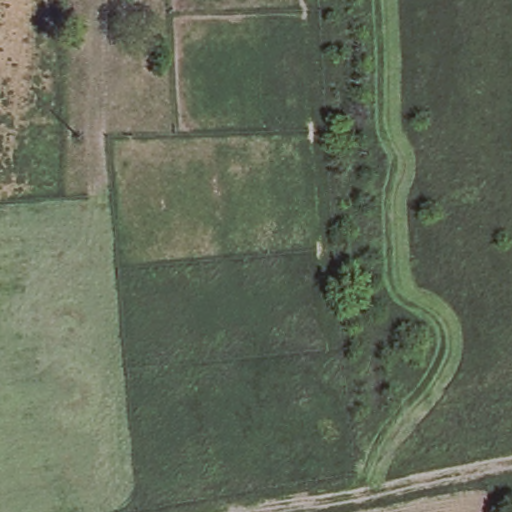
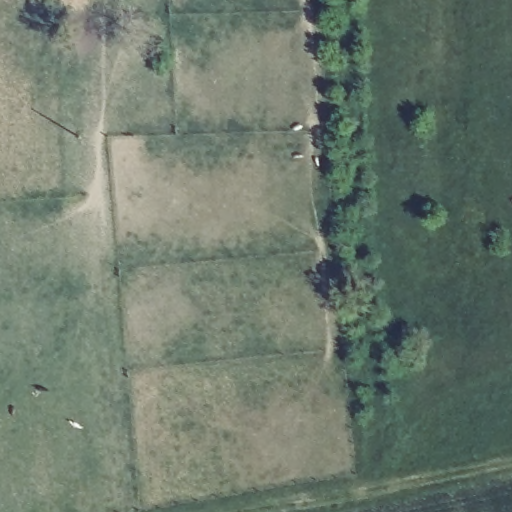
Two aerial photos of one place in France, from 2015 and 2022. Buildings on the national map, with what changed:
[]

